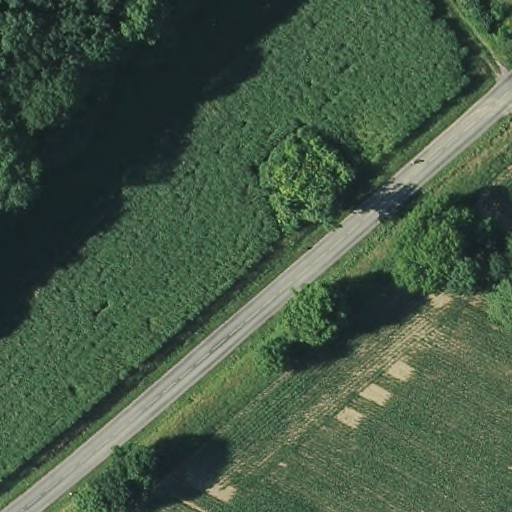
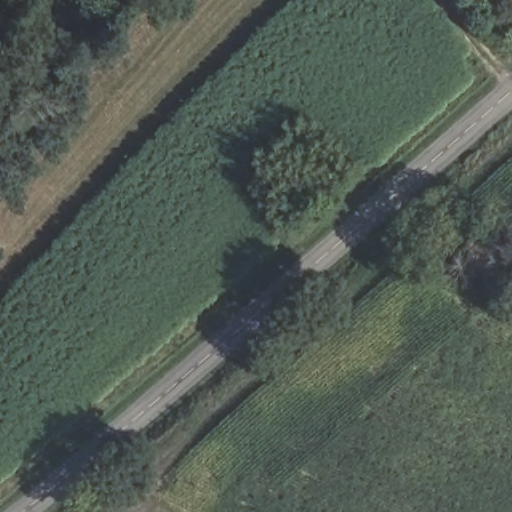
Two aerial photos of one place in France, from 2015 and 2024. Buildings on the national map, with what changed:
unchanged [(512,0),(512,32),(481,0),(512,0)]
unchanged [(340,176),(311,205),(280,173),(307,145),(340,176)]
unchanged [(512,282),(505,295),(454,264),(479,234),(512,253),(512,282)]

